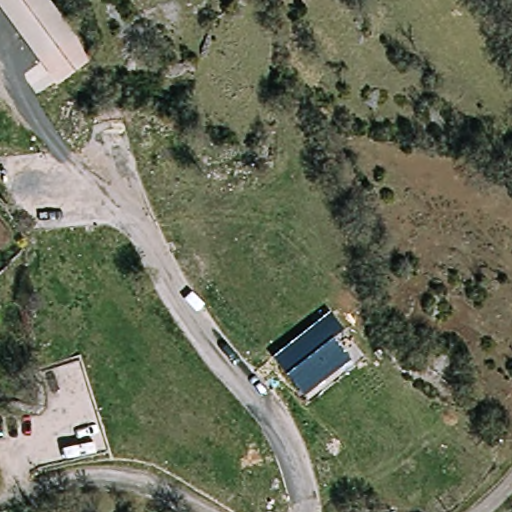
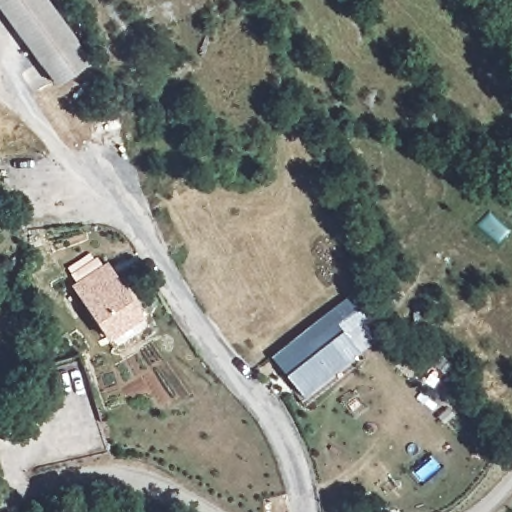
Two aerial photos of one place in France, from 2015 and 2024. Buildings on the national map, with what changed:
unchanged [(54,84),(0,11),(0,0),(48,0),(73,34),(85,62),(54,84)]
new [(105,260),(144,315),(106,339),(70,285),(105,260)]
unchanged [(362,354),(308,401),(304,393),(273,357),(327,312),(342,328),(362,354)]

